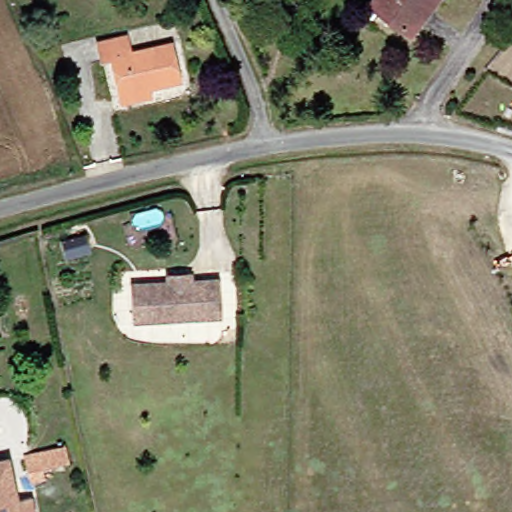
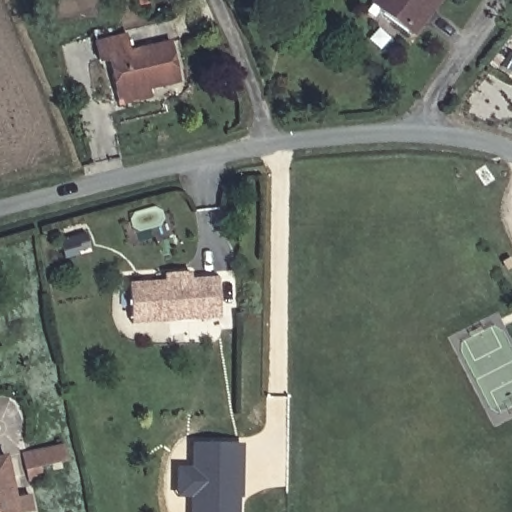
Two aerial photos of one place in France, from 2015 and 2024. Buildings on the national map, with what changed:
unchanged [(413,37),(370,4),(374,0),(441,0),(413,37)]
unchanged [(118,110),(106,64),(98,65),(93,44),(122,37),(125,53),(167,46),(178,87),(147,94),(148,103),(118,110)]
unchanged [(85,230),(89,247),(65,253),(60,236),(85,230)]
unchanged [(125,288),(160,286),(159,279),(185,277),(186,284),(213,283),(215,323),(128,328),(125,288)]
new [(181,496),(181,467),(195,467),(195,444),(242,445),(241,512),(194,512),(194,497),(181,496)]
unchanged [(65,445),(68,461),(26,471),(22,453),(65,445)]
unchanged [(25,500),(28,512),(0,512),(0,460),(1,460),(10,503),(25,500)]

